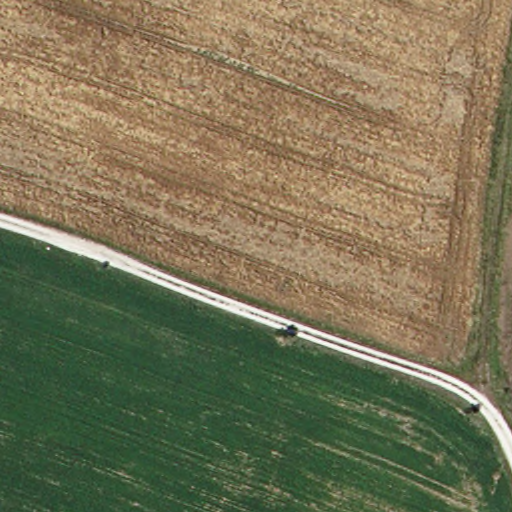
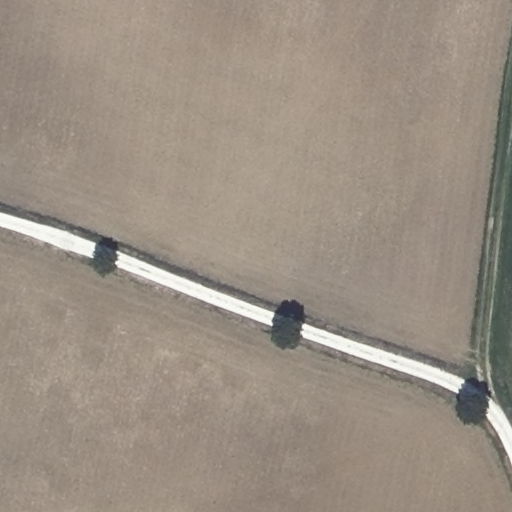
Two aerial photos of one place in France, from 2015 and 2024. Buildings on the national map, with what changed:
[]

